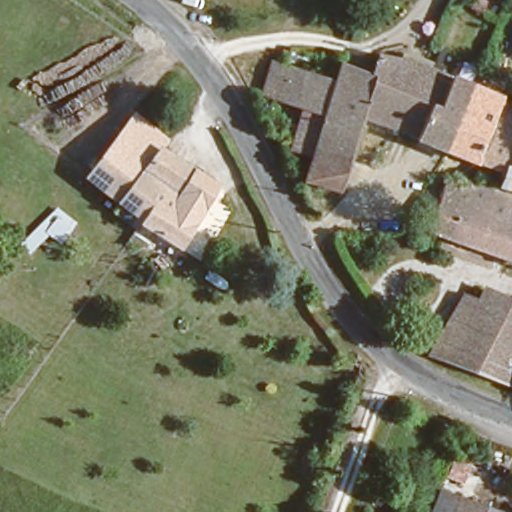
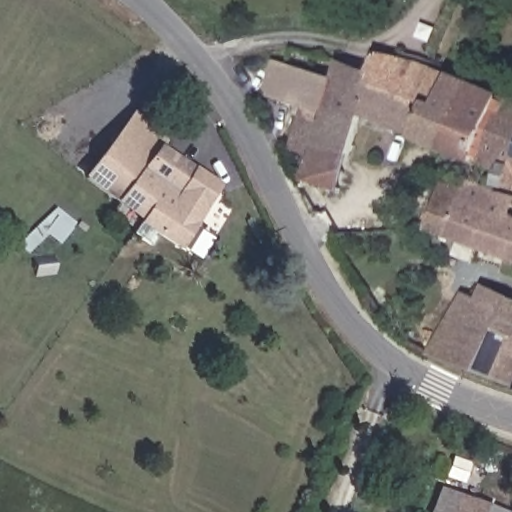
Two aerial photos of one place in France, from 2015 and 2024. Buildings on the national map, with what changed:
unchanged [(443,0),(453,0),(451,5),(442,2),(443,0)]
unchanged [(467,0),(477,0),(473,7),(465,5),(467,0)]
unchanged [(366,118),(355,152),(319,140),(338,80),(343,64),(374,74),(382,56),(471,87),(450,147),(366,118)]
unchanged [(315,153),(298,147),(312,106),(267,89),(279,59),(287,61),(338,80),(319,140),(315,153)]
unchanged [(483,160),(465,153),(450,147),(471,87),(512,102),(512,113),(507,125),(496,130),(483,160)]
unchanged [(173,134),(160,148),(218,184),(180,246),(164,239),(151,243),(130,231),(141,212),(85,175),(132,111),(173,134)]
unchanged [(509,170),(483,160),(496,130),(507,125),(512,113),(512,187),(504,184),(509,170)]
unchanged [(307,177),(315,153),(319,140),(355,152),(343,189),(307,177)]
unchanged [(364,241),(362,224),(393,220),(401,219),(403,226),(433,222),(446,184),(466,191),(451,240),(429,236),(405,235),(364,241)]
unchanged [(512,222),(512,261),(451,240),(466,191),(469,186),(500,192),(502,192),(494,216),(512,222)]
unchanged [(454,287),(474,294),(476,288),(508,298),(512,300),(512,382),(430,352),(454,287)]
unchanged [(439,482),(453,487),(443,512),(427,512),(439,482)]
unchanged [(508,511),(508,512),(443,512),(453,487),(508,511)]

